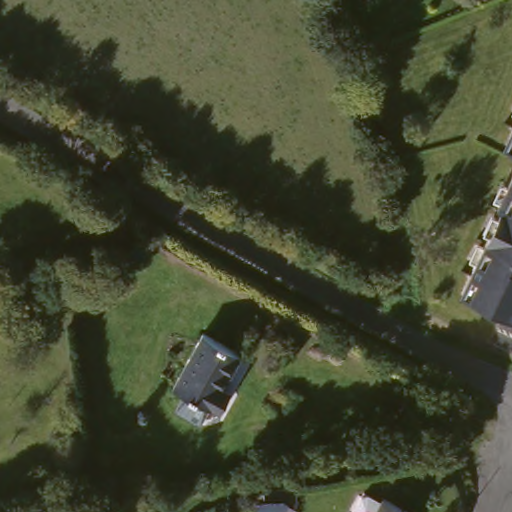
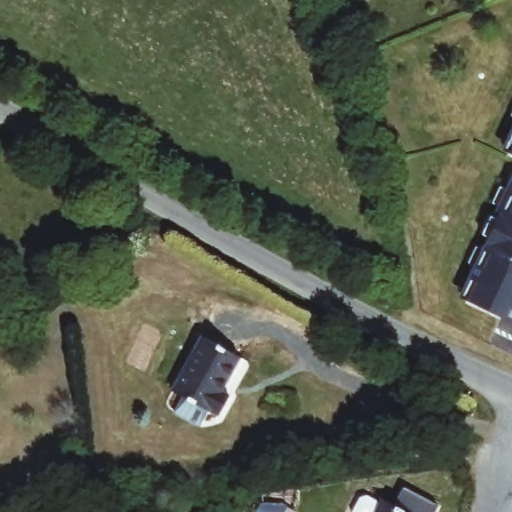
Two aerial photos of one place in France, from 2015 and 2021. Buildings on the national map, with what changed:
unchanged [(512,124),(512,162),(500,156),(512,124)]
unchanged [(512,198),(512,322),(456,300),(504,194),(512,198)]
unchanged [(242,361),(225,395),(234,400),(222,418),(214,415),(211,415),(176,396),(206,341),(242,361)]
unchanged [(390,495),(418,512),(379,512),(390,495)]

